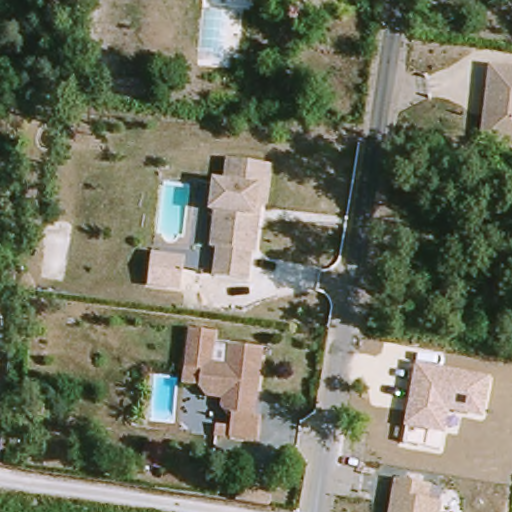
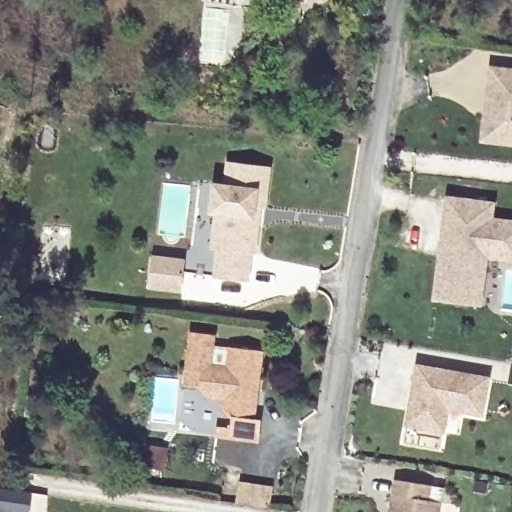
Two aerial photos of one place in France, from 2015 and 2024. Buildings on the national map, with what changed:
unchanged [(482,114),(484,101),(487,65),(512,68),(512,141),(480,138),(482,114)]
unchanged [(251,253),(247,281),(219,278),(222,249),(217,249),(221,213),(212,211),(215,184),(226,186),(229,161),(269,166),(264,208),(260,207),(257,226),(255,253),(251,253)]
new [(445,197),(491,203),(488,219),(512,222),(512,260),(483,256),(480,284),(477,306),(432,300),(435,278),(441,231),(445,197)]
unchanged [(154,255),(186,258),(182,291),(150,289),(154,255)]
new [(13,324),(8,364),(0,363),(0,322),(13,324)]
unchanged [(252,420),(260,421),(257,443),(229,439),(232,419),(228,418),(222,410),(222,401),(206,399),(199,389),(201,374),(186,372),(190,334),(213,337),(209,368),(227,370),(229,350),(261,354),(256,394),(254,406),(252,420)]
unchanged [(484,418),(448,413),(444,433),(404,426),(415,365),(490,376),(484,418)]
unchanged [(395,480),(428,486),(426,500),(438,503),(437,512),(390,512),(395,480)]
unchanged [(268,512),(237,512),(239,500),(269,504),(268,512)]

